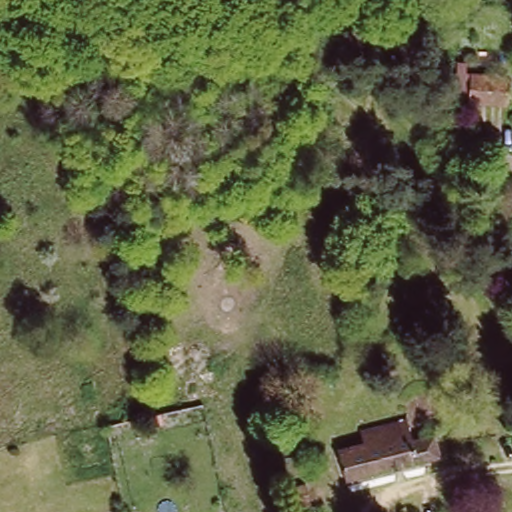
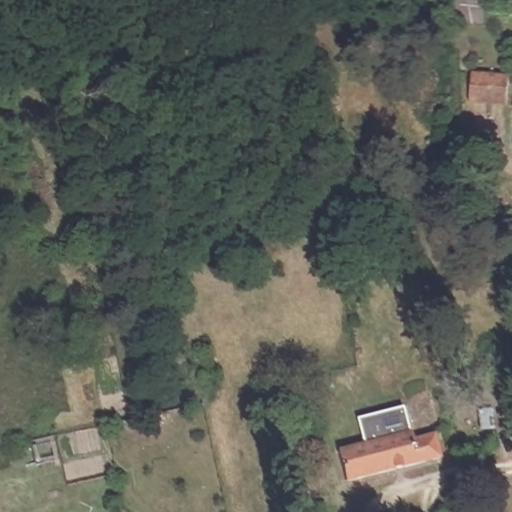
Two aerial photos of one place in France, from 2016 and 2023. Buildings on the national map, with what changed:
unchanged [(509,71),(505,100),(469,97),(470,69),(509,71)]
unchanged [(148,424),(147,417),(160,413),(162,421),(148,424)]
unchanged [(352,478),(345,448),(367,443),(365,433),(414,423),(417,439),(439,435),(444,458),(352,478)]
unchanged [(315,480),(320,498),(300,503),(295,484),(315,480)]

